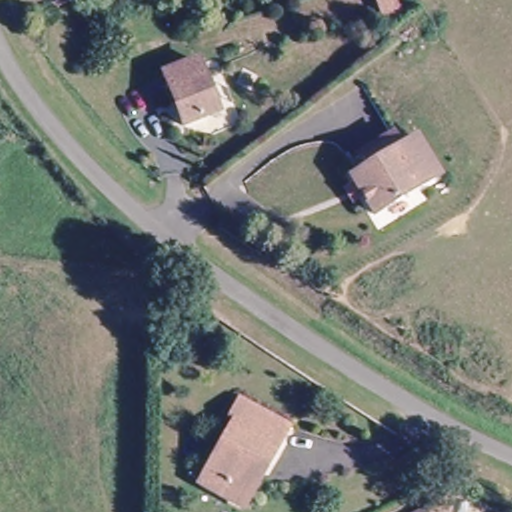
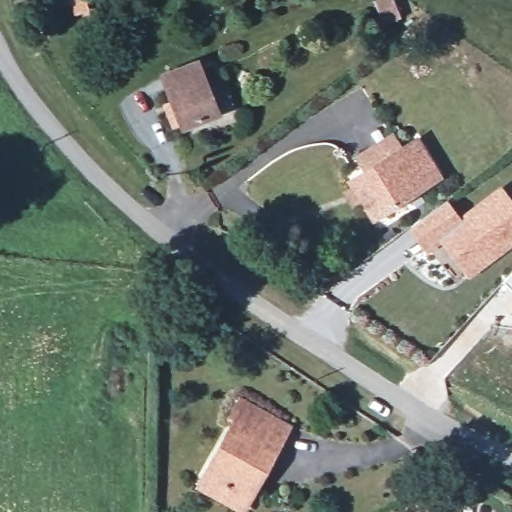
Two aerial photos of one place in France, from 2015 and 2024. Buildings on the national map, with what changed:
unchanged [(165,74),(200,60),(220,110),(185,124),(165,74)]
unchanged [(446,175),(386,218),(359,183),(365,177),(355,165),(399,136),(406,148),(421,140),(446,175)]
new [(461,226),(501,195),(512,209),(512,245),(475,274),(447,238),(430,252),(413,230),(445,205),(461,226)]
new [(512,277),(512,294),(504,286),(512,277)]
unchanged [(200,490),(232,426),(224,422),(236,402),(282,426),(238,509),(200,490)]
unchanged [(459,489),(453,512),(421,512),(424,500),(459,489)]

